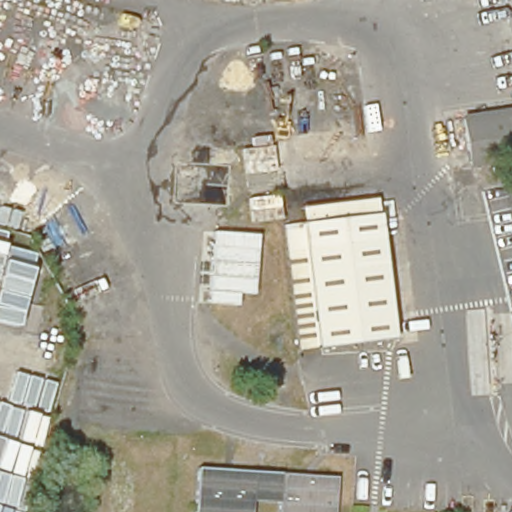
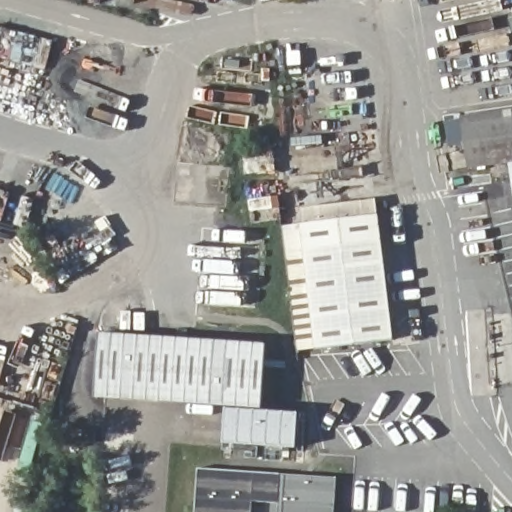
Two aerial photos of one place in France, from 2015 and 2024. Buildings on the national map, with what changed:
unchanged [(279,0),(303,0),(280,3),(279,0)]
unchanged [(460,174),(452,124),(512,115),(512,165),(460,174)]
unchanged [(377,203),(395,328),(315,337),(315,344),(297,344),(281,213),(377,203)]
unchanged [(253,294),(238,293),(237,307),(208,304),(213,233),(258,236),(253,294)]
new [(95,397),(99,333),(267,343),(262,409),(95,397)]
new [(226,407),(262,409),(299,412),(297,449),(223,443),(226,407)]
unchanged [(200,468),(337,477),(334,512),(280,512),(281,502),(253,501),(252,512),(196,512),(200,468)]

